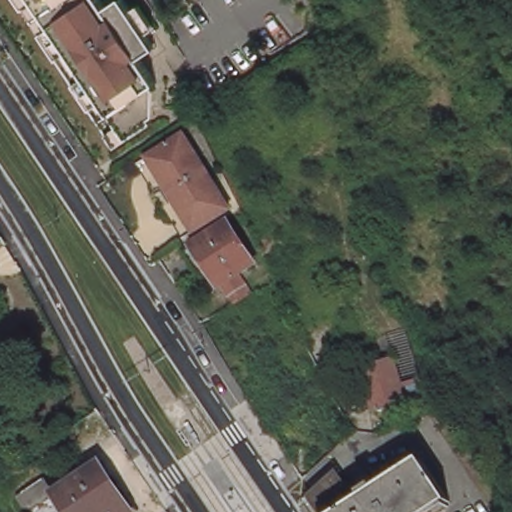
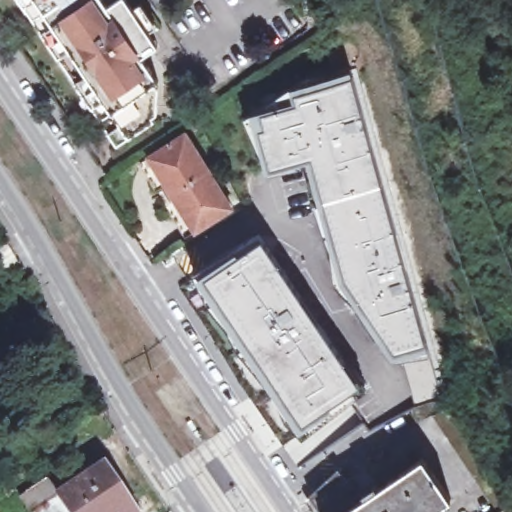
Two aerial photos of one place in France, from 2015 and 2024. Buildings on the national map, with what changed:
unchanged [(89,71),(78,54),(41,0),(59,0),(90,45),(102,62),(128,101),(115,110),(89,71)]
unchanged [(115,110),(128,101),(102,62),(90,45),(59,0),(150,0),(151,1),(163,19),(166,24),(174,35),(163,43),(158,46),(175,71),(171,73),(174,77),(173,103),(169,106),(171,110),(139,131),(133,135),(124,123),(115,110)]
new [(298,102),(296,92),(351,78),(425,343),(441,394),(414,401),(395,349),(345,275),(312,155),(271,164),(260,127),(266,125),(263,112),(298,102)]
unchanged [(151,163),(156,159),(193,136),(215,171),(179,195),(169,179),(163,183),(151,163)]
unchanged [(184,215),(189,212),(179,195),(215,171),(238,209),(201,232),(196,235),(184,215)]
demolished [(236,278),(227,264),(221,267),(213,260),(203,244),(239,221),(264,259),(236,278)]
new [(260,240),(359,382),(304,422),(206,276),(260,240)]
demolished [(302,365),(296,350),(307,344),(315,359),(302,365)]
demolished [(400,420),(394,423),(390,406),(375,410),(363,369),(393,359),(402,387),(417,383),(421,397),(406,401),(410,415),(400,420)]
demolished [(331,431),(263,469),(241,434),(315,390),(324,385),(354,429),(339,443),(331,431)]
unchanged [(432,411),(457,394),(475,419),(512,471),(512,502),(501,510),(432,411)]
demolished [(117,427),(103,436),(90,418),(104,408),(117,427)]
unchanged [(311,496),(344,473),(357,491),(353,494),(358,501),(379,487),(376,481),(387,474),(391,479),(422,458),(451,501),(435,512),(322,512),(311,496)]
unchanged [(116,465),(147,512),(42,512),(34,499),(20,480),(46,461),(61,481),(70,495),(116,465)]

